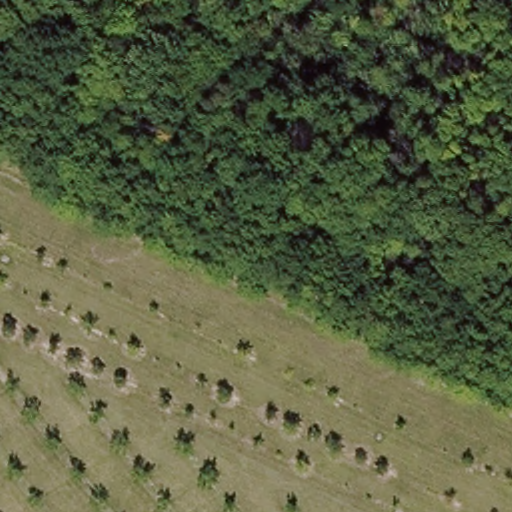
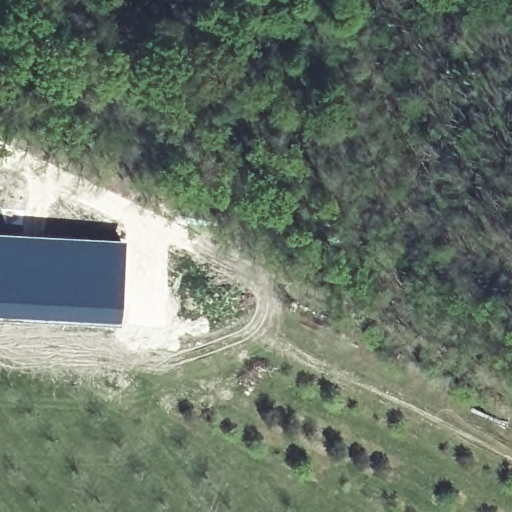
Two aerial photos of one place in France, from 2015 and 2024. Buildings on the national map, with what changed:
new [(127,238),(122,322),(0,315),(0,231),(127,238)]

